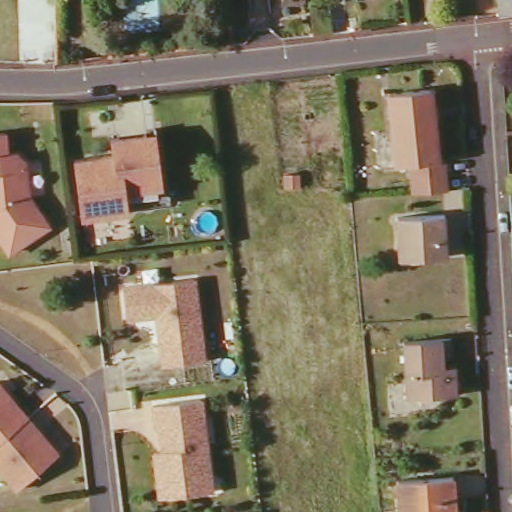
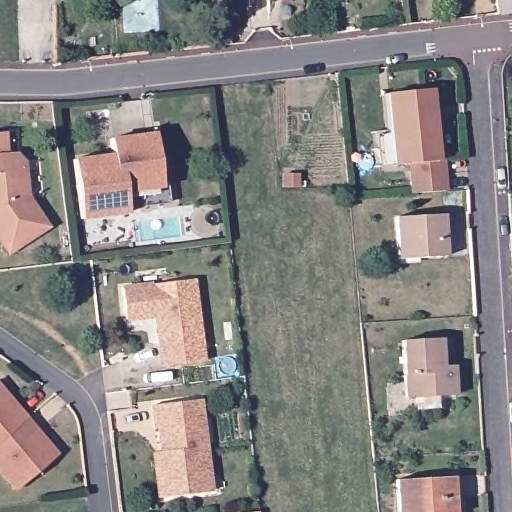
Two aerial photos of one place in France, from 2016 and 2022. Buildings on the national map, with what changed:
unchanged [(512,0),(512,9),(497,11),(495,0),(512,0)]
unchanged [(427,87),(434,159),(440,158),(443,190),(410,193),(408,161),(393,162),(377,164),(373,130),(383,128),(379,91),(386,90),(427,87)]
unchanged [(0,156),(0,131),(3,131),(6,156),(0,156)]
unchanged [(108,137),(153,131),(159,180),(165,179),(167,204),(157,206),(127,209),(117,151),(110,151),(108,137)]
unchanged [(82,221),(73,157),(117,151),(128,218),(82,221)]
unchanged [(29,198),(51,230),(7,259),(0,248),(0,156),(16,155),(27,163),(29,198)]
unchanged [(396,218),(442,215),(444,256),(441,257),(398,259),(396,218)]
unchanged [(168,339),(166,318),(158,319),(129,322),(128,316),(125,291),(196,282),(206,364),(166,369),(162,340),(168,339)]
unchanged [(449,336),(450,354),(442,355),(443,370),(454,370),(456,392),(405,395),(401,340),(449,336)]
unchanged [(60,459),(21,492),(0,467),(0,388),(12,402),(16,408),(41,436),(45,442),(60,459)]
unchanged [(194,492),(167,495),(159,496),(154,451),(161,450),(158,426),(154,425),(151,404),(200,398),(209,477),(211,490),(194,492)]
unchanged [(396,480),(453,476),(456,512),(398,512),(396,480)]

